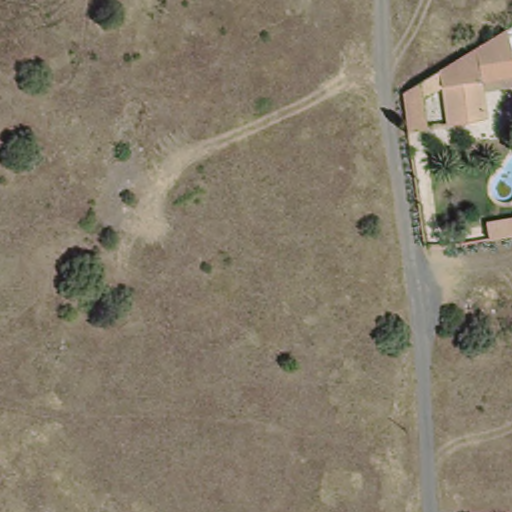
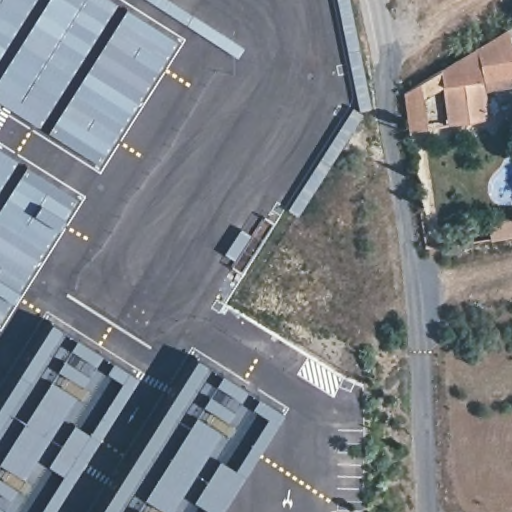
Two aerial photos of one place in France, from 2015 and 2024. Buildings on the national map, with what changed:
new [(0,0),(33,0),(0,52),(0,0)]
new [(38,126),(0,102),(0,73),(46,0),(114,0),(116,1),(38,126)]
new [(176,40),(98,164),(47,131),(125,9),(176,40)]
unchanged [(512,50),(512,76),(483,83),(441,89),(437,72),(509,31),(512,50)]
unchanged [(448,129),(401,137),(396,96),(437,72),(441,89),(448,129)]
unchanged [(485,96),(488,121),(448,129),(441,89),(483,83),(485,96)]
new [(0,184),(0,149),(16,159),(0,184)]
new [(0,320),(0,205),(25,165),(76,197),(0,320)]
unchanged [(492,218),(512,216),(512,233),(492,235),(492,218)]
new [(49,512),(0,512),(0,398),(48,322),(136,377),(49,512)]
new [(281,410),(216,512),(94,512),(195,355),(281,410)]

